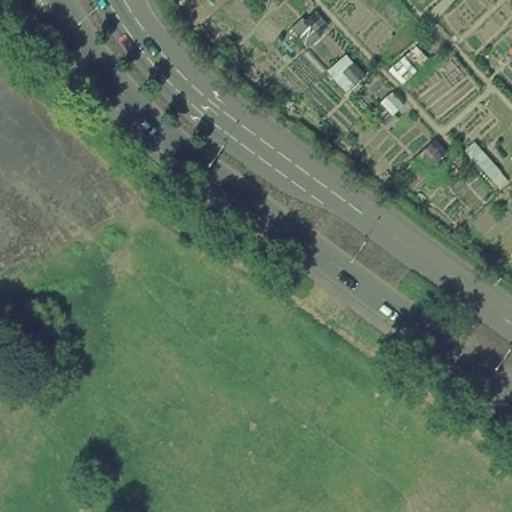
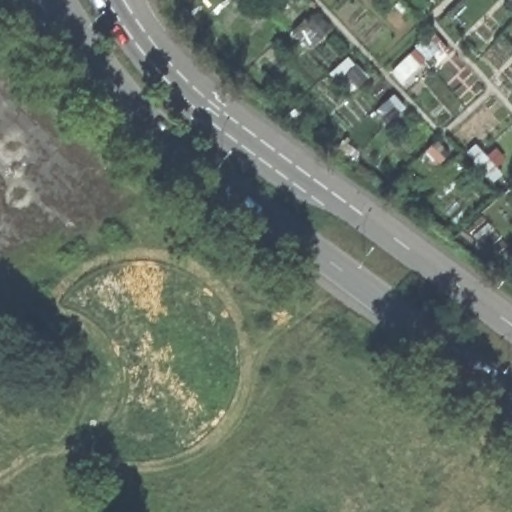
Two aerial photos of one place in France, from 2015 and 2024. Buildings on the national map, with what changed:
unchanged [(299,27),(319,10),(331,24),(312,42),(299,27)]

